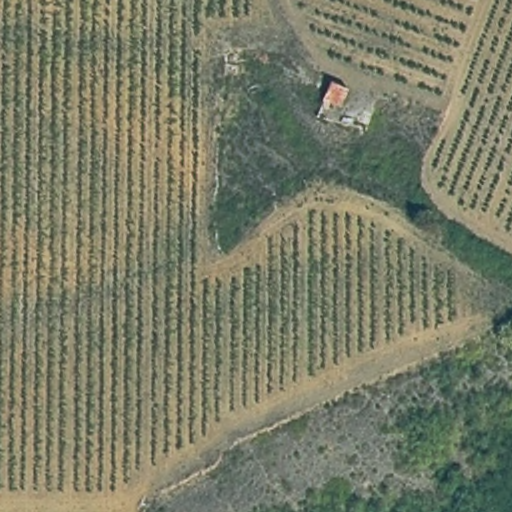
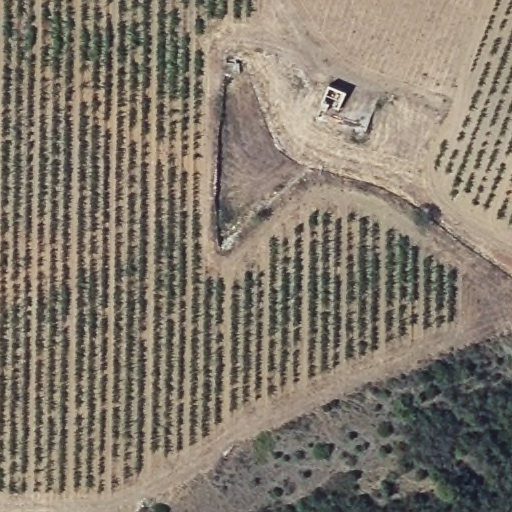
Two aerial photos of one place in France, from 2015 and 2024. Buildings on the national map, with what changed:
unchanged [(353,86),(342,106),(321,97),(330,75),(353,86)]

